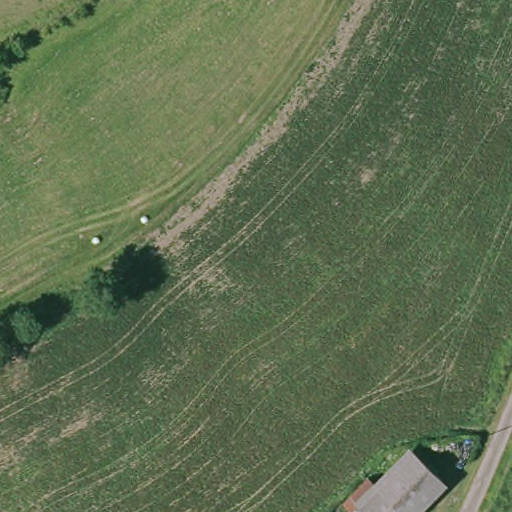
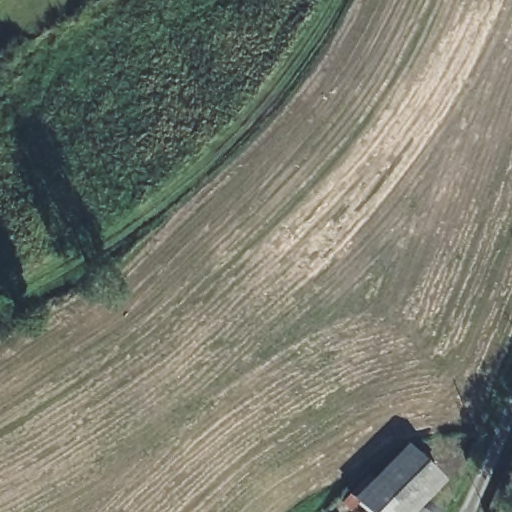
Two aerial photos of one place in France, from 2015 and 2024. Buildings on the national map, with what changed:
unchanged [(354,498),(410,446),(447,487),(420,512),(366,512),(354,498)]

